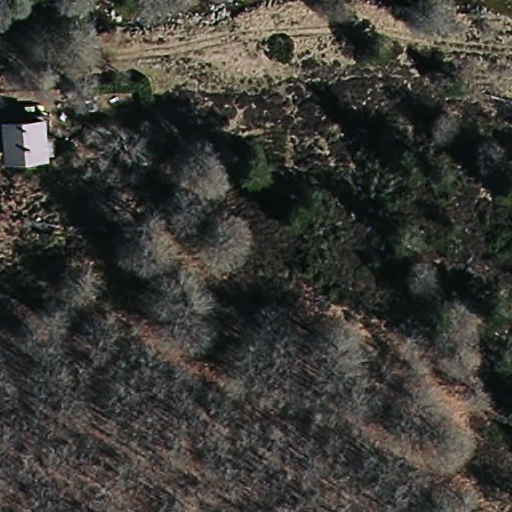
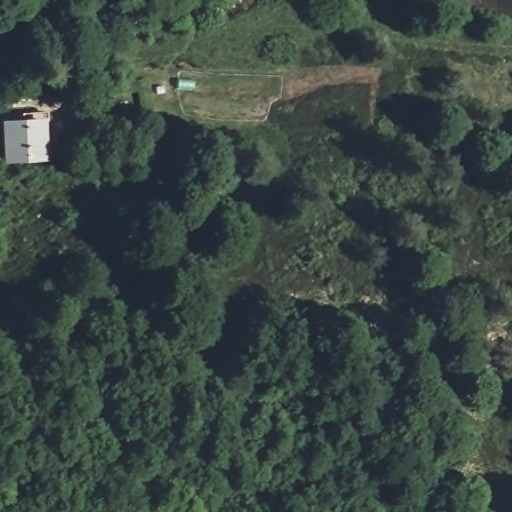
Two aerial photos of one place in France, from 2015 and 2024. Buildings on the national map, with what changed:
unchanged [(6,119),(58,115),(57,160),(8,160),(6,119)]

